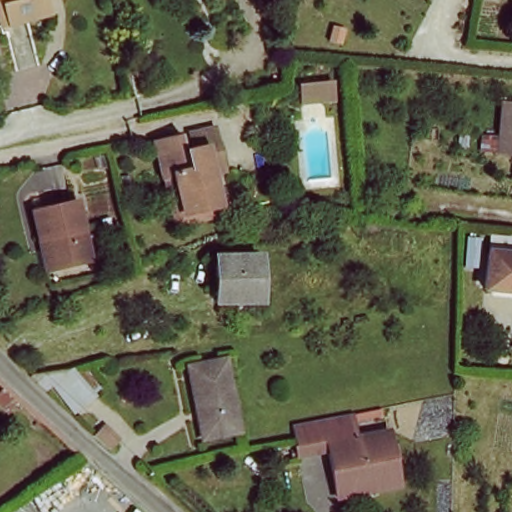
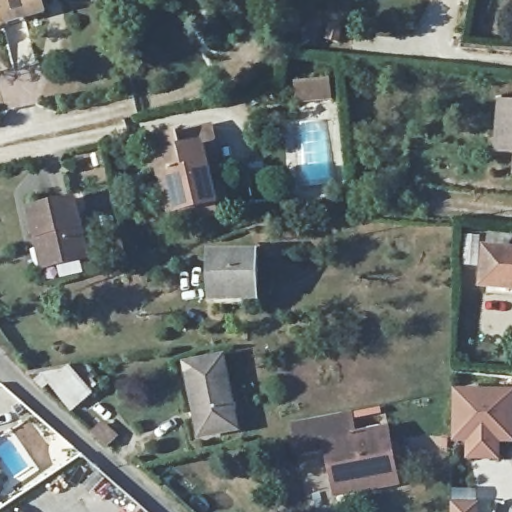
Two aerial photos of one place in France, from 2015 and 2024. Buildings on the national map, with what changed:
unchanged [(4,24),(0,10),(0,0),(40,0),(44,14),(4,24)]
unchanged [(331,81),(332,104),(296,106),(295,82),(331,81)]
unchanged [(493,151),(497,102),(512,103),(512,152),(493,151)]
unchanged [(177,225),(167,176),(160,142),(185,137),(187,152),(196,151),(194,135),(220,130),(229,175),(218,176),(223,207),(225,216),(177,225)]
unchanged [(34,211),(78,202),(88,258),(51,266),(46,237),(39,237),(34,211)]
unchanged [(487,288),(492,250),(512,253),(512,291),(487,288)]
unchanged [(256,300),(210,300),(209,255),(255,254),(256,300)]
unchanged [(189,371),(226,363),(239,435),(204,442),(189,371)]
unchanged [(93,396),(71,415),(65,410),(35,382),(27,375),(63,369),(71,367),(93,396)]
new [(454,390),(512,390),(512,439),(495,439),(495,436),(486,436),(486,439),(453,438),(454,390)]
unchanged [(336,487),(333,475),(328,452),(298,457),(295,443),(293,433),(291,425),(351,412),(353,422),(355,437),(389,431),(400,485),(377,489),(338,497),(336,487)]
unchanged [(94,435),(105,423),(118,436),(108,447),(94,435)]

